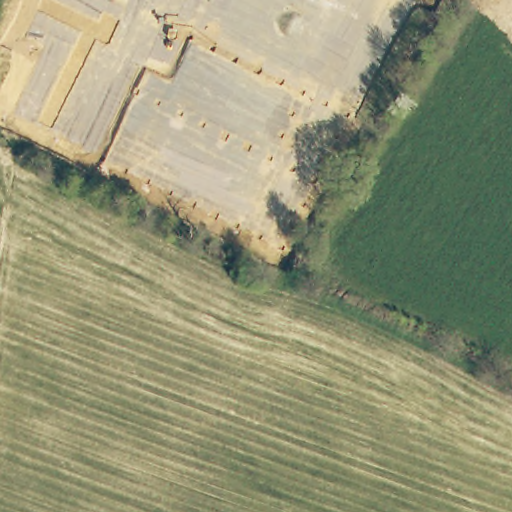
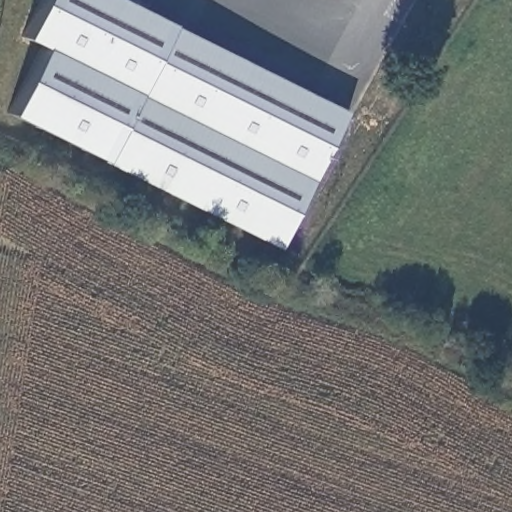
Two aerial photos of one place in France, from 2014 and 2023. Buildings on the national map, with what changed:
new [(279,249),(100,160),(7,114),(41,47),(21,37),(39,0),(121,0),(168,23),(347,112),(279,249)]

